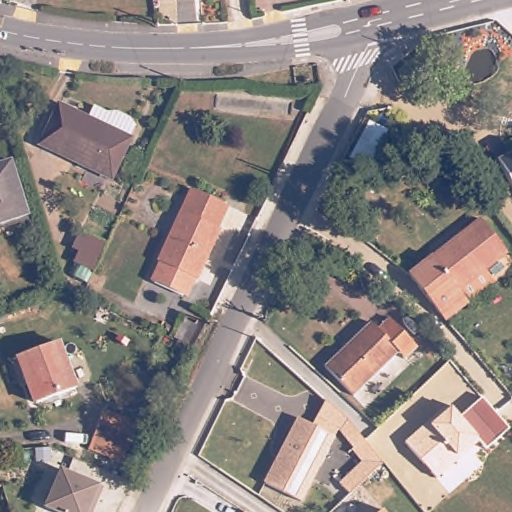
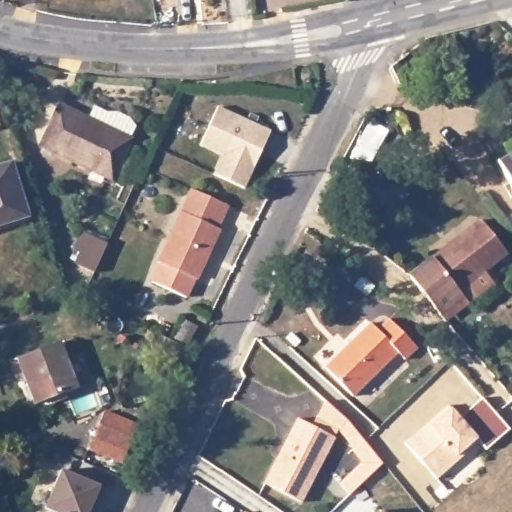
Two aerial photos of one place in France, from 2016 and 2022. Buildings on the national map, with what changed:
new [(222,155),(200,145),(218,106),(272,131),(245,189),(213,174),(222,155)]
unchanged [(46,153),(63,113),(88,124),(92,114),(109,120),(119,119),(131,124),(137,131),(133,142),(117,181),(46,153)]
unchanged [(512,183),(501,165),(512,158),(512,183)]
unchanged [(16,167),(34,220),(0,230),(0,173),(16,167)]
unchanged [(158,284),(166,266),(164,265),(193,192),(229,207),(219,230),(222,232),(201,281),(199,280),(191,298),(158,284)]
unchanged [(453,323),(447,317),(416,280),(485,220),(511,251),(490,270),(500,282),(453,323)]
unchanged [(71,275),(77,264),(68,261),(76,241),(102,252),(90,283),(71,275)]
unchanged [(369,322),(378,329),(389,313),(421,338),(410,352),(403,346),(366,397),(333,374),(369,322)]
unchanged [(64,345),(79,389),(39,402),(24,358),(64,345)]
unchanged [(483,443),(442,483),(409,449),(451,409),(462,421),(484,400),(505,421),(512,429),(512,430),(491,451),(483,443)]
unchanged [(96,441),(100,429),(109,403),(144,416),(134,442),(130,453),(96,441)]
unchanged [(304,418),(340,437),(305,502),(269,482),(304,418)]
unchanged [(95,504),(91,512),(48,512),(62,473),(105,489),(99,506),(95,504)]
unchanged [(384,512),(377,512),(382,508),(384,512)]
unchanged [(240,512),(242,510),(245,512),(240,512)]

